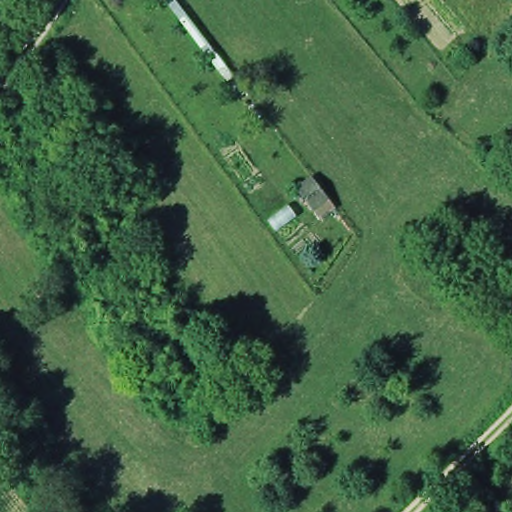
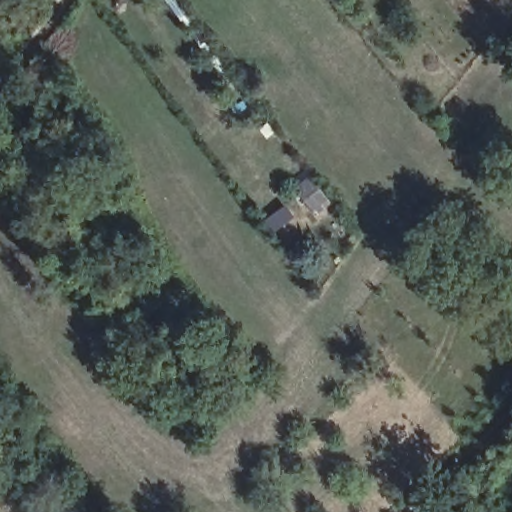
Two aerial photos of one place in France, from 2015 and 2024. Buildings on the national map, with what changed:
[]

